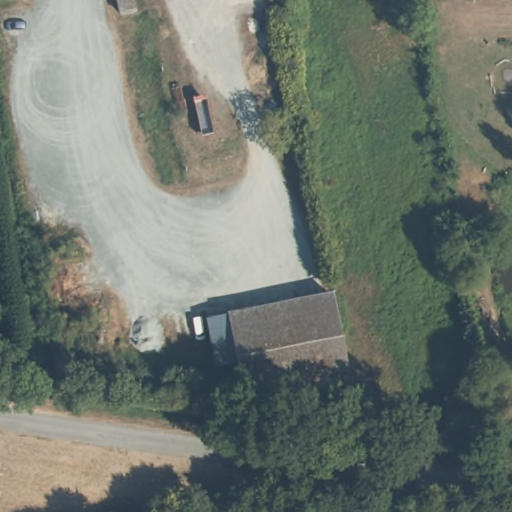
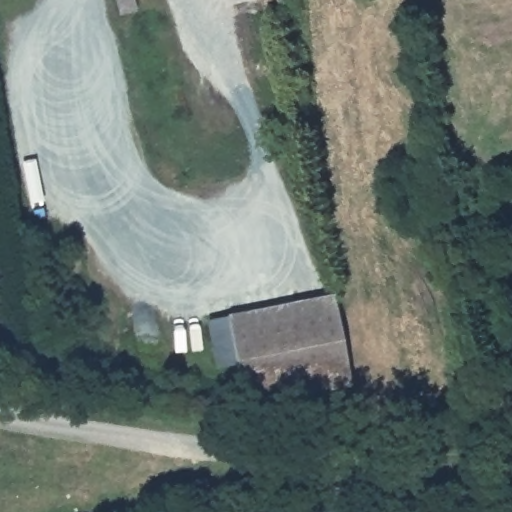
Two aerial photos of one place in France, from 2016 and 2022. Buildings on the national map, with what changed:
unchanged [(115,14),(112,0),(133,0),(135,9),(115,14)]
unchanged [(250,404),(241,360),(227,363),(221,364),(212,320),(216,319),(338,294),(354,384),(250,404)]

